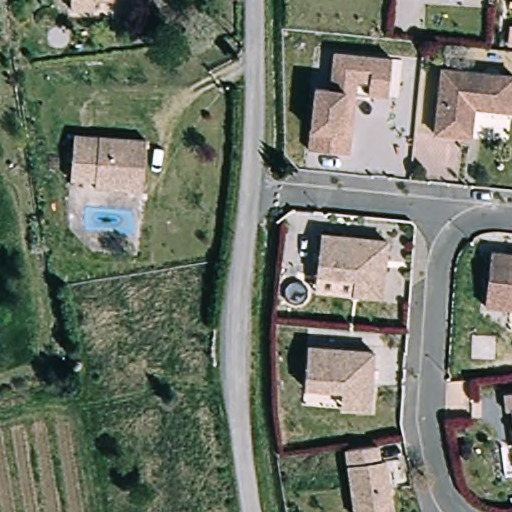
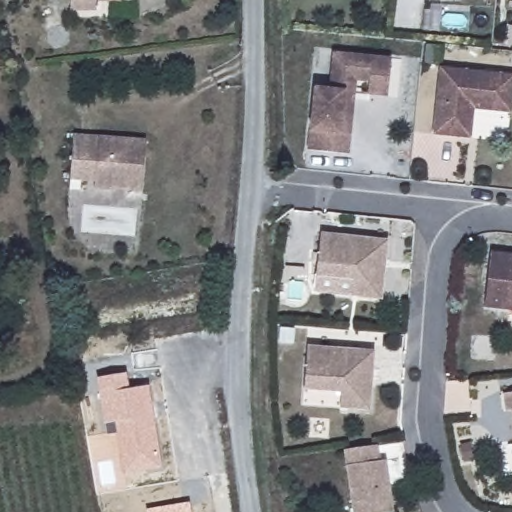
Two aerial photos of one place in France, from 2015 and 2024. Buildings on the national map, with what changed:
unchanged [(99,4),(99,10),(74,13),(73,0),(160,0),(160,2),(99,4)]
unchanged [(353,147),(313,144),(317,91),(333,92),(336,55),(394,60),(390,98),(371,96),(372,83),(358,82),(357,95),(355,125),(353,147)]
unchanged [(512,106),(480,101),(475,138),(438,133),(446,68),(512,76),(512,106)]
unchanged [(69,178),(72,133),(146,138),(144,168),(143,183),(124,182),(69,178)]
unchanged [(325,239),(390,247),(383,304),(361,301),(317,295),(319,280),(325,239)]
unchanged [(497,249),(512,251),(512,306),(490,304),(497,249)]
unchanged [(306,393),(311,352),(376,358),(370,414),(348,412),(305,408),(306,393)]
new [(122,476),(115,422),(104,424),(100,394),(97,378),(126,373),(128,389),(149,386),(162,469),(122,476)]
unchanged [(503,398),(512,397),(512,426),(506,427),(503,398)]
unchanged [(397,512),(358,512),(346,457),(375,450),(380,465),(386,464),(397,512)]
new [(147,509),(189,503),(191,512),(147,512),(147,509)]

